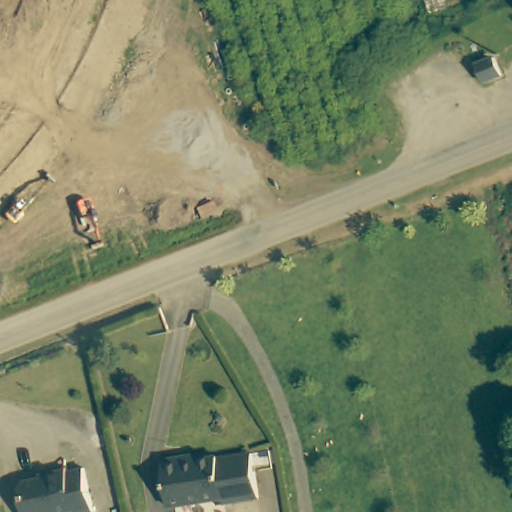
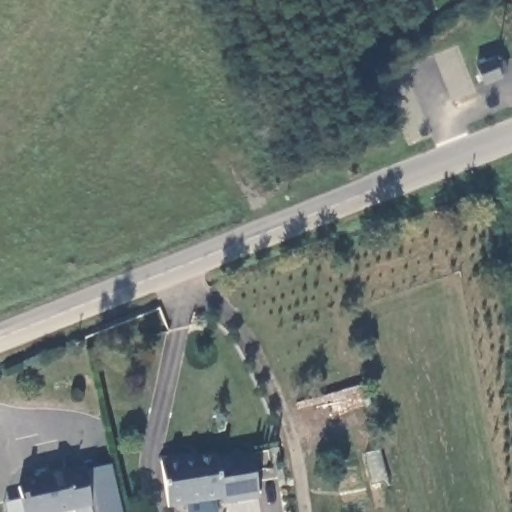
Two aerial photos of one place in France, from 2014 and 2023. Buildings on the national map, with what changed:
unchanged [(483,60),(492,56),(501,52),(509,71),(492,79),(483,60)]
unchanged [(226,504),(172,508),(165,456),(221,446),(258,451),(264,499),(226,504)]
unchanged [(67,511),(61,512),(21,512),(18,501),(14,498),(11,488),(14,483),(37,478),(36,475),(76,467),(86,512),(68,512),(67,511)]

